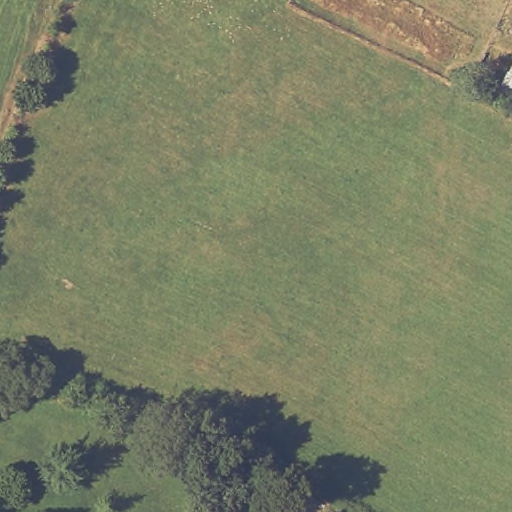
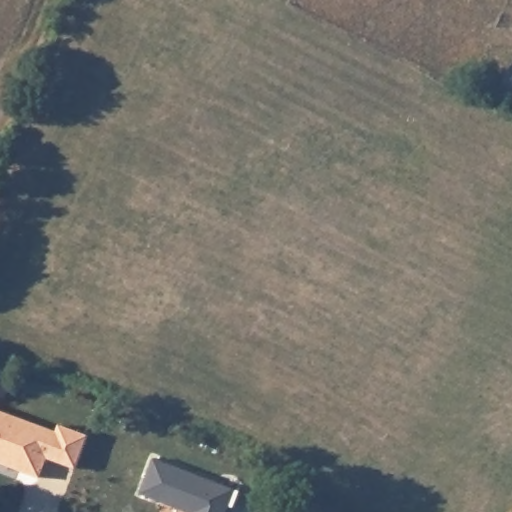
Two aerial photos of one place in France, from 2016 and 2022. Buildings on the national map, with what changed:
new [(58,424),(88,435),(75,471),(47,460),(41,478),(0,464),(0,411),(56,431),(58,424)]
new [(234,489),(225,512),(184,512),(138,495),(153,459),(234,489)]

